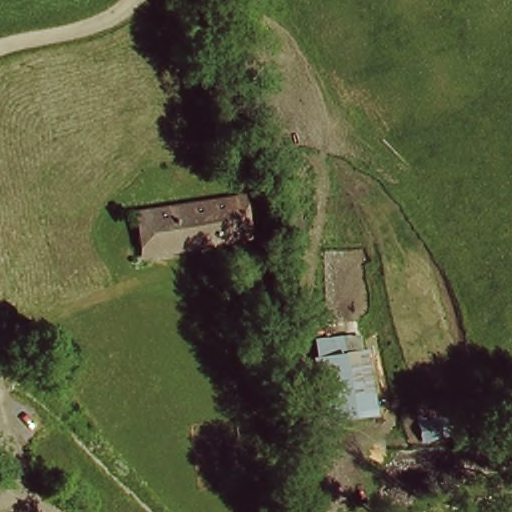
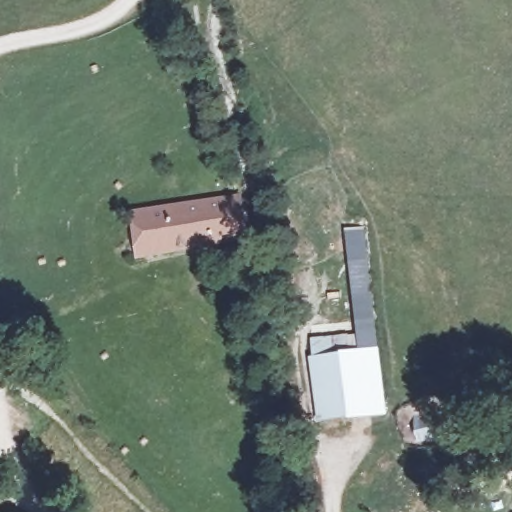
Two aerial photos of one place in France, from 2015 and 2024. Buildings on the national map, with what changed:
unchanged [(235,199),(239,238),(131,255),(125,210),(233,194),(235,199)]
new [(387,416),(318,420),(310,359),(313,358),(312,340),(358,335),(349,263),(367,261),(379,349),(387,416)]
demolished [(362,337),(371,422),(350,423),(344,338),(362,337)]
demolished [(339,360),(346,420),(320,423),(313,363),(339,360)]

